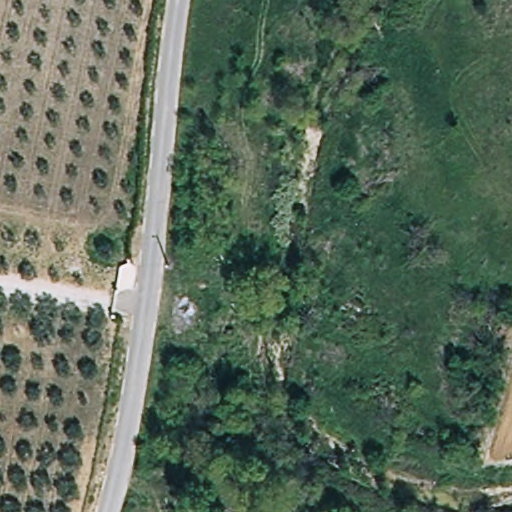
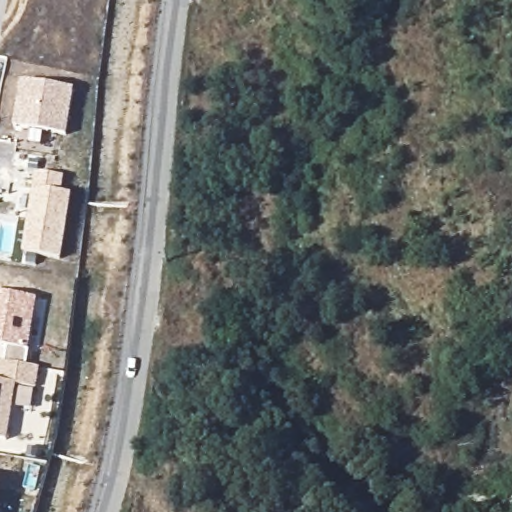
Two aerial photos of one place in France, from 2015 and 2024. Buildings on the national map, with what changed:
new [(68,139),(14,129),(22,81),(76,91),(68,139)]
new [(63,262),(25,256),(35,190),(37,174),(65,179),(64,194),(73,196),(63,262)]
new [(28,367),(41,370),(38,390),(18,387),(18,390),(35,393),(32,412),(15,410),(9,442),(0,441),(0,379),(2,365),(7,365),(10,348),(0,347),(0,296),(39,302),(31,351),(28,367)]

